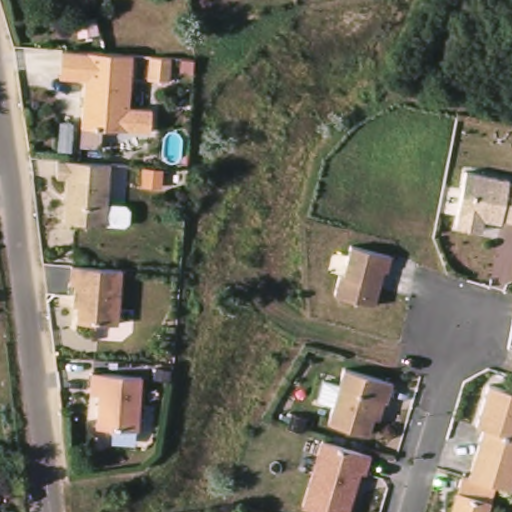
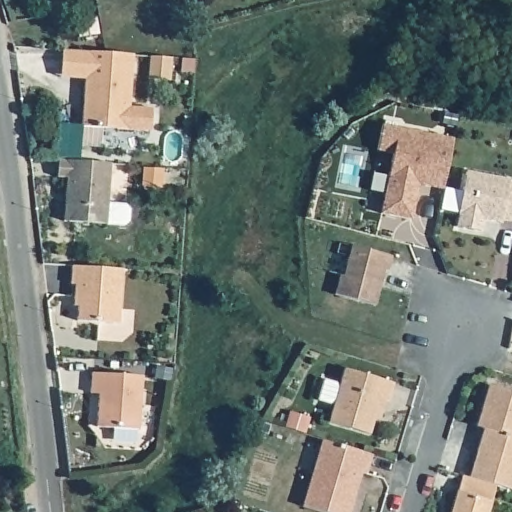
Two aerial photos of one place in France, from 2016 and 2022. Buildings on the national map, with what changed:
unchanged [(80,14),(100,10),(103,25),(83,30),(80,14)]
unchanged [(84,140),(86,121),(89,74),(64,72),(66,45),(91,46),(109,47),(137,50),(131,125),(106,122),(105,141),(84,140)]
unchanged [(176,52),(174,75),(153,74),(154,51),(176,52)]
new [(386,120),(457,134),(447,185),(422,180),(415,215),(384,209),(397,149),(381,145),(386,120)]
unchanged [(64,190),(66,172),(56,171),(57,155),(66,155),(109,159),(106,199),(124,200),(129,205),(128,216),(123,220),(68,216),(63,216),(64,190)]
unchanged [(480,225),(461,222),(463,210),(462,210),(471,167),(512,175),(512,216),(506,215),(506,218),(488,215),(486,227),(480,225)]
unchanged [(396,252),(392,266),(389,265),(379,301),(339,290),(344,271),(348,272),(355,241),(396,252)]
unchanged [(78,293),(79,279),(74,279),(76,261),(108,263),(126,265),(122,318),(81,315),(82,301),(78,300),(78,293)]
unchanged [(397,378),(391,397),(383,395),(373,430),(332,417),(348,363),(397,378)]
unchanged [(146,371),(142,425),(100,421),(103,388),(94,388),(95,367),(146,371)]
unchanged [(512,392),(512,488),(512,490),(495,485),(490,484),(480,481),(477,480),(469,477),(483,428),(476,426),(488,385),(512,392)]
unchanged [(376,450),(370,469),(364,467),(350,512),(341,512),(307,501),(327,435),(376,450)]
unchanged [(487,512),(450,512),(461,475),(469,477),(477,480),(480,481),(490,484),(495,485),(487,512)]
unchanged [(260,506),(274,510),(273,512),(259,512),(260,506)]

